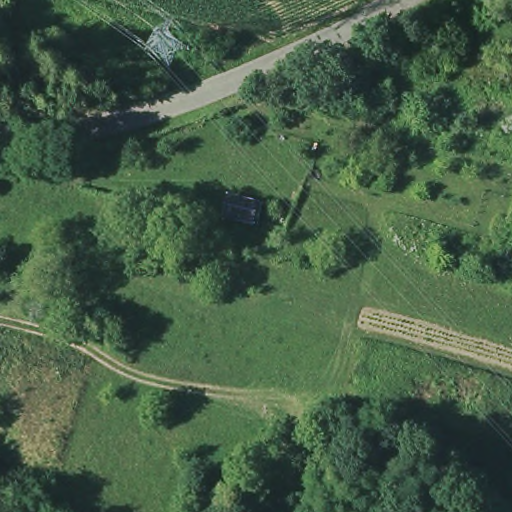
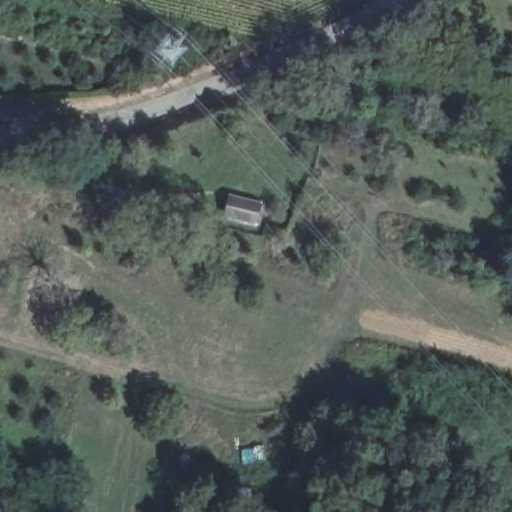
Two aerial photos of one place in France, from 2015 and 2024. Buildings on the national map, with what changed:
unchanged [(268,226),(222,217),(226,189),(271,203),(268,226)]

